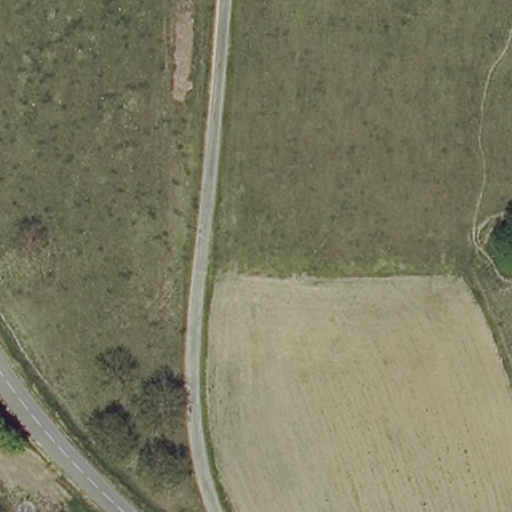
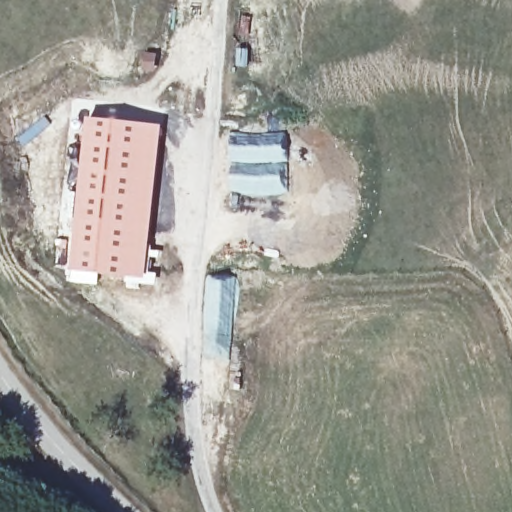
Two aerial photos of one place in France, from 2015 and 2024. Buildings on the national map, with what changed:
new [(72,272),(89,119),(162,127),(147,280),(72,272)]

